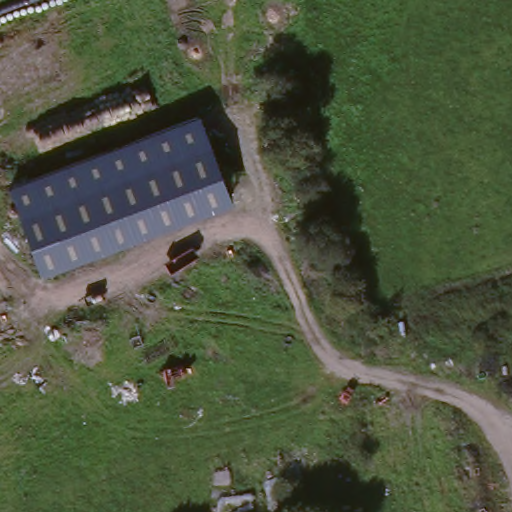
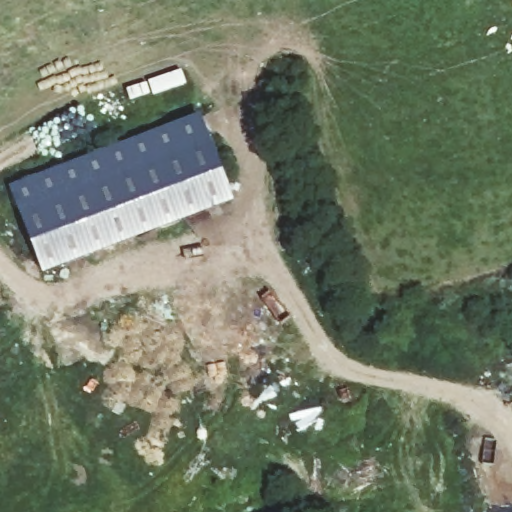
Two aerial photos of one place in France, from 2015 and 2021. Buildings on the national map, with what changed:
unchanged [(236,204),(44,274),(9,185),(199,115),(236,204)]

